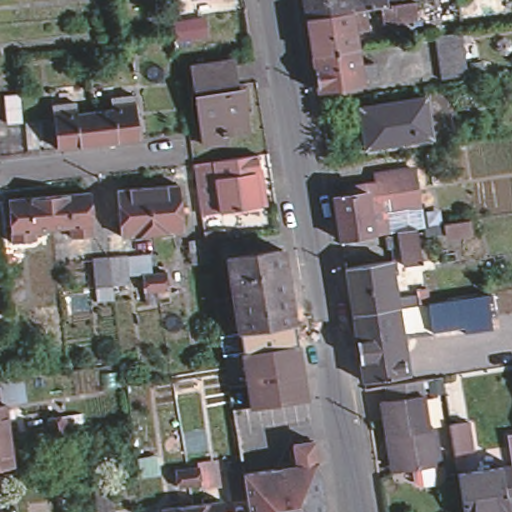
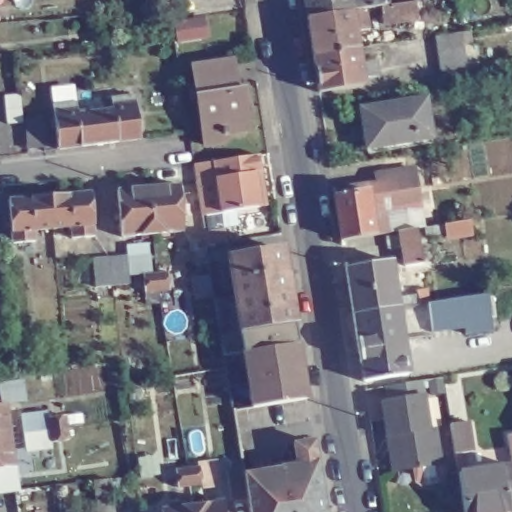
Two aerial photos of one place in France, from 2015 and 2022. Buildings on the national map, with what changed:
unchanged [(354,21),(355,29),(350,29),(354,52),(309,59),(303,22),(300,0),(346,0),(349,0),(449,0),(422,4),(411,5),(413,22),(399,25),(390,26),(380,28),(377,11),(348,15),(350,22),(354,21)]
unchanged [(462,36),(469,80),(445,84),(437,40),(462,36)]
unchanged [(372,81),(358,83),(360,90),(315,95),(309,59),(354,52),(357,69),(370,66),(372,81)]
unchanged [(245,116),(240,117),(242,134),(198,141),(187,74),(225,67),(230,96),(242,94),(245,116)]
unchanged [(363,156),(357,117),(422,107),(428,145),(363,156)]
unchanged [(60,160),(57,130),(55,116),(78,115),(79,127),(117,123),(116,110),(137,109),(138,120),(142,151),(60,160)]
unchanged [(47,160),(30,160),(27,134),(44,132),(47,160)]
unchanged [(268,214),(230,220),(211,223),(202,170),(223,167),(267,161),(270,179),(275,212),(268,214)]
unchanged [(385,215),(377,205),(373,205),(372,201),(359,202),(358,195),(339,198),(338,191),(362,187),(364,190),(375,177),(398,174),(405,172),(412,211),(405,213),(385,215)]
unchanged [(11,234),(8,203),(90,192),(92,224),(94,235),(72,238),(70,226),(33,231),(35,243),(12,245),(11,234)]
unchanged [(117,199),(178,192),(183,237),(122,245),(117,199)]
unchanged [(365,240),(333,245),(326,200),(339,198),(358,195),(359,202),(372,201),(373,205),(375,215),(362,217),(363,225),(378,224),(380,230),(384,230),(385,236),(380,237),(365,240)]
unchanged [(473,236),(447,240),(445,227),(472,223),(473,236)]
unchanged [(397,270),(393,250),(387,250),(385,239),(390,237),(390,235),(390,234),(407,231),(410,248),(413,267),(397,270)]
unchanged [(241,339),(240,340),(227,265),(280,256),(292,330),(241,339)]
unchanged [(337,271),(382,264),(382,271),(387,271),(388,277),(383,278),(389,311),(345,318),(337,271)]
unchanged [(168,291),(145,294),(143,276),(166,273),(168,291)]
unchanged [(420,308),(418,293),(428,291),(431,306),(451,303),(462,301),(490,296),(492,313),(465,318),(454,320),(432,323),(430,306),(420,308)]
unchanged [(345,318),(389,311),(393,343),(399,342),(400,348),(395,350),(398,377),(355,385),(345,318)]
unchanged [(250,415),(242,359),(245,358),(241,339),(292,330),(295,350),(305,405),(250,415)]
unchanged [(379,438),(373,405),(381,403),(378,388),(412,382),(415,397),(421,431),(427,430),(433,465),(435,479),(432,484),(412,487),(407,485),(405,470),(390,473),(385,474),(379,438)]
unchanged [(43,431),(41,408),(60,406),(62,429),(43,431)]
unchanged [(0,409),(5,409),(10,470),(0,471),(0,409)]
unchanged [(465,429),(470,458),(450,462),(446,432),(465,429)]
unchanged [(174,460),(173,441),(197,440),(198,458),(174,460)]
unchanged [(293,450),(312,446),(323,512),(247,512),(242,479),(296,471),(293,450)]
unchanged [(507,473),(505,455),(512,453),(512,512),(459,512),(453,481),(507,473)]
unchanged [(176,490),(173,468),(197,465),(197,462),(217,459),(221,487),(202,490),(202,486),(176,490)]
unchanged [(92,512),(90,490),(104,487),(108,512),(92,512)]
unchanged [(166,512),(222,505),(223,512),(166,512)]

